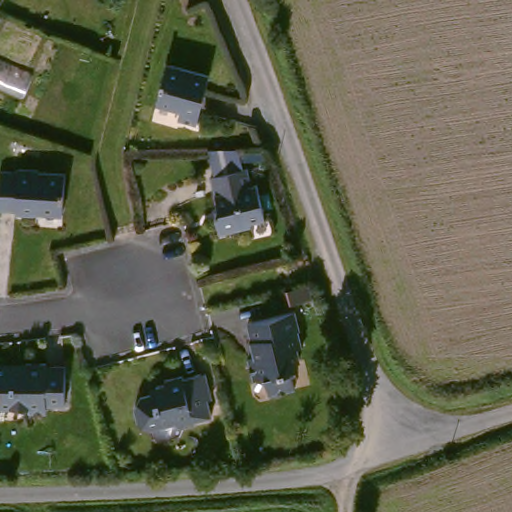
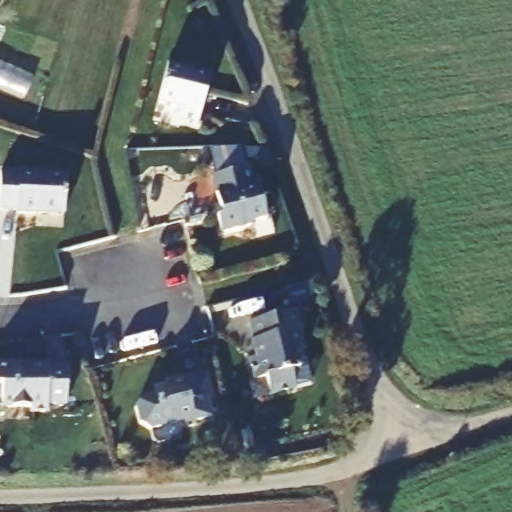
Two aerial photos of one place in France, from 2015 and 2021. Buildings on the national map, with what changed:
unchanged [(214,70),(198,116),(179,110),(183,101),(159,93),(172,55),(214,70)]
unchanged [(260,181),(268,216),(253,220),(253,223),(222,230),(218,214),(223,213),(214,173),(225,170),(226,170),(223,156),(216,157),(213,144),(242,142),(247,165),(250,165),(254,182),(260,181)]
unchanged [(46,167),(73,170),(69,210),(42,207),(41,209),(22,207),(23,205),(4,203),(8,165),(26,167),(26,164),(46,165),(46,167)]
unchanged [(325,295),(305,298),(303,298),(300,284),(322,280),(325,295)]
unchanged [(307,325),(310,341),(305,342),(307,355),(301,364),(297,365),(300,382),(274,386),(272,369),(260,371),(257,349),(268,347),(266,332),(262,332),(259,313),(306,305),(309,325),(307,325)]
unchanged [(19,358),(19,361),(33,360),(33,357),(53,357),(54,360),(72,360),(73,397),(54,398),(55,406),(38,406),(38,401),(15,402),(9,396),(9,390),(0,390),(0,358),(19,358)]
unchanged [(226,406),(208,410),(209,415),(198,417),(197,417),(189,413),(163,420),(152,412),(149,397),(155,386),(167,383),(172,375),(180,373),(179,370),(197,365),(198,368),(216,363),(226,406)]

